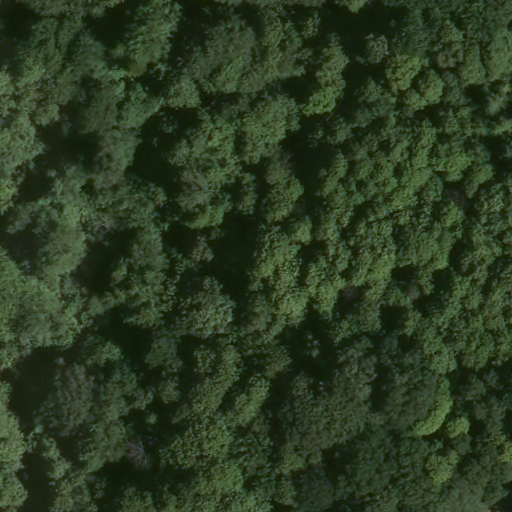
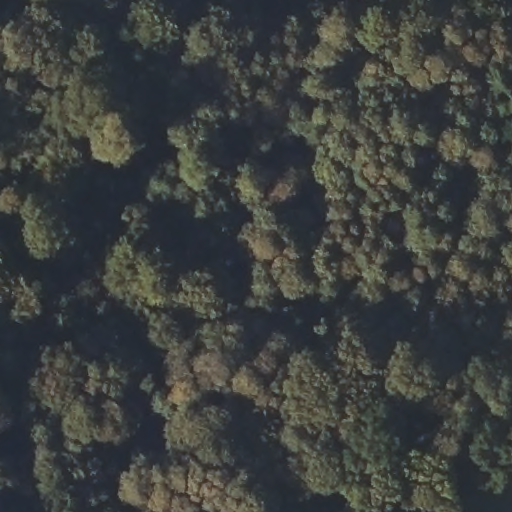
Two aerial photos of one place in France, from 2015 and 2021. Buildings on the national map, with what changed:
[]

